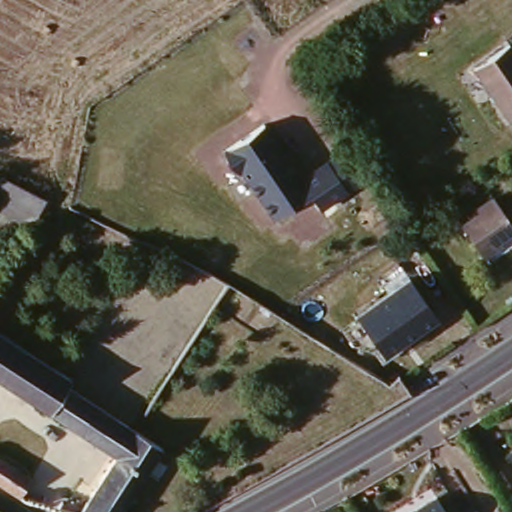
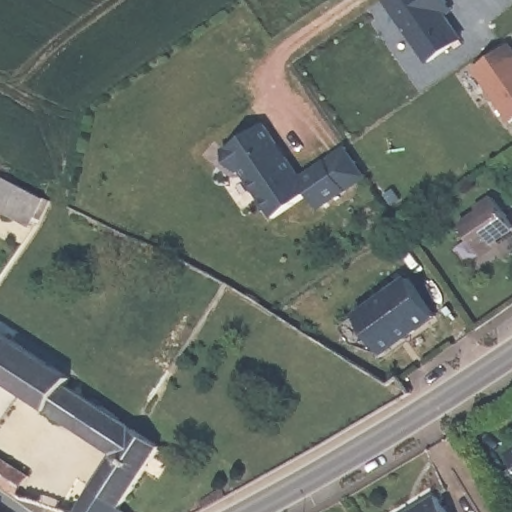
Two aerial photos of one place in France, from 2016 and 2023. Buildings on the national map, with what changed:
new [(455,11),(448,17),(463,37),(429,61),(384,0),(447,0),(455,11)]
unchanged [(512,122),(471,66),(508,40),(512,46),(512,122)]
unchanged [(265,123),(299,172),(348,145),(369,179),(320,209),(310,194),(276,218),(242,171),(239,173),(224,149),(265,123)]
unchanged [(41,220),(36,217),(33,223),(0,204),(0,184),(7,171),(55,198),(41,220)]
unchanged [(512,234),(496,246),(499,249),(486,258),(464,228),(483,214),(478,209),(495,198),(512,222),(512,234)]
demolished [(203,278),(193,295),(160,274),(170,259),(203,278)]
unchanged [(434,308),(414,322),(418,329),(384,354),(356,313),(409,274),(434,308)]
unchanged [(72,379),(69,384),(105,412),(86,440),(0,369),(0,320),(72,379)]
unchanged [(129,431),(110,459),(86,440),(105,412),(129,431)]
unchanged [(80,501),(110,459),(129,431),(159,453),(116,512),(48,512),(72,496),(80,501)]
unchanged [(512,450),(509,446),(512,444),(512,450)]
unchanged [(33,476),(23,494),(0,479),(0,457),(33,476)]
unchanged [(453,512),(418,512),(444,495),(453,512)]
unchanged [(4,512),(0,512),(0,509),(4,512)]

